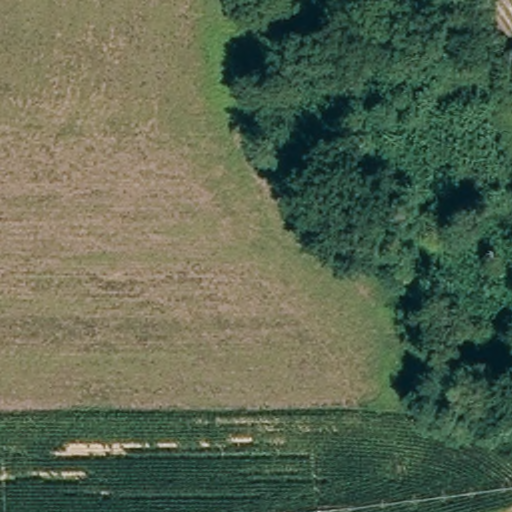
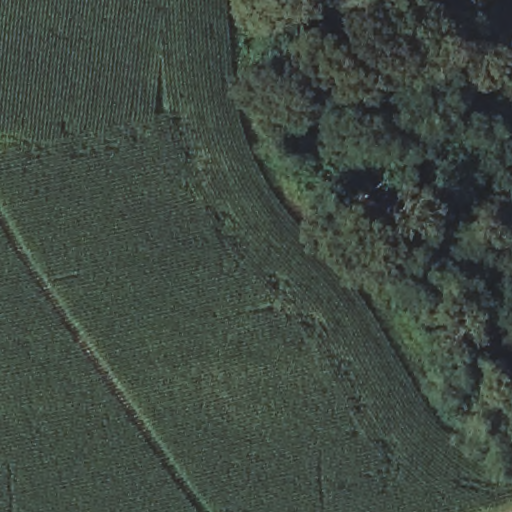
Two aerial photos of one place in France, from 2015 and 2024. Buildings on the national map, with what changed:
[]

